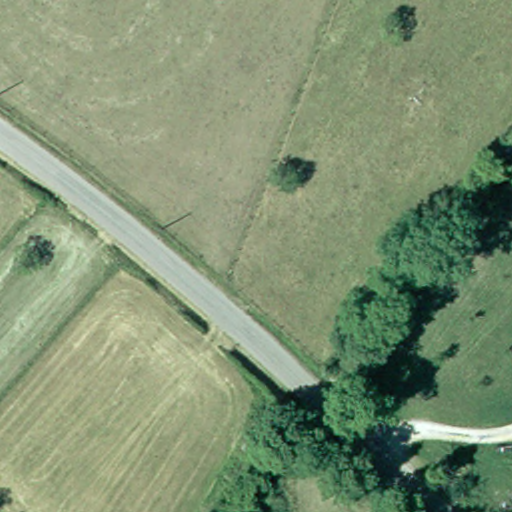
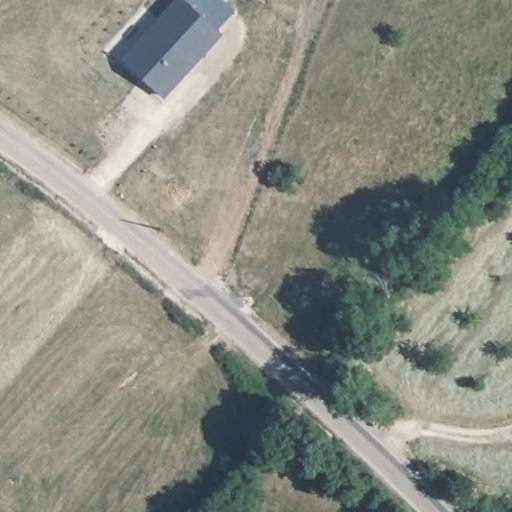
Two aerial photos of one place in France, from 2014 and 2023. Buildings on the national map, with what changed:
new [(176,0),(186,0),(223,34),(166,98),(121,58),(176,0)]

